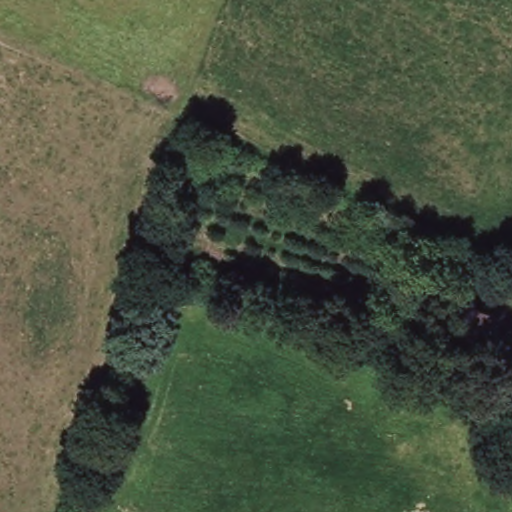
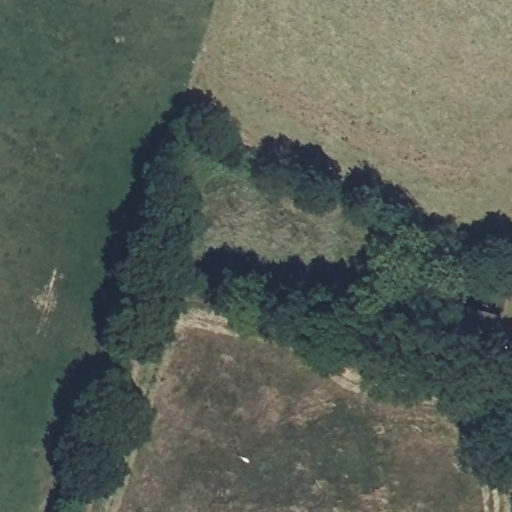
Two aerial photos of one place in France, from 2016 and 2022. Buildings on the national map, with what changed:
unchanged [(503,319),(496,347),(456,336),(468,310),(503,319)]

